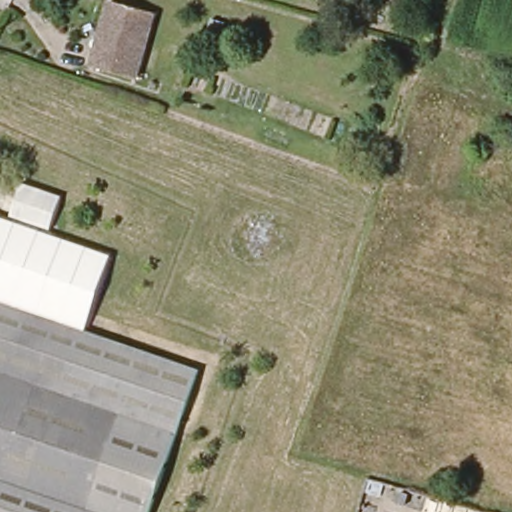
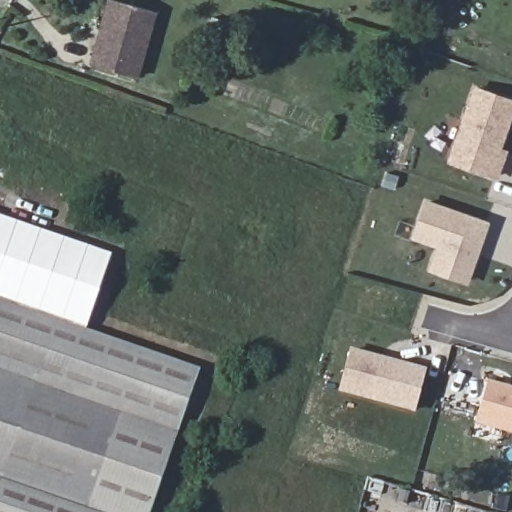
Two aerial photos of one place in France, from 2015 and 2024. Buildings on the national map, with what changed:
unchanged [(98,52),(110,2),(154,15),(135,79),(88,67),(92,51),(98,52)]
new [(477,91),(512,103),(512,117),(496,160),(502,162),(496,179),(451,162),(477,91)]
unchanged [(11,217),(22,177),(62,191),(50,230),(112,250),(86,327),(196,366),(176,428),(36,381),(47,348),(0,332),(0,213),(11,217)]
new [(467,283),(433,271),(442,244),(391,226),(402,196),(488,225),(482,241),(477,256),(467,283)]
unchanged [(47,348),(36,381),(176,428),(147,512),(0,512),(0,332),(47,348)]
new [(415,412),(337,392),(350,347),(427,368),(415,412)]
new [(488,383),(512,390),(512,433),(477,423),(488,383)]

